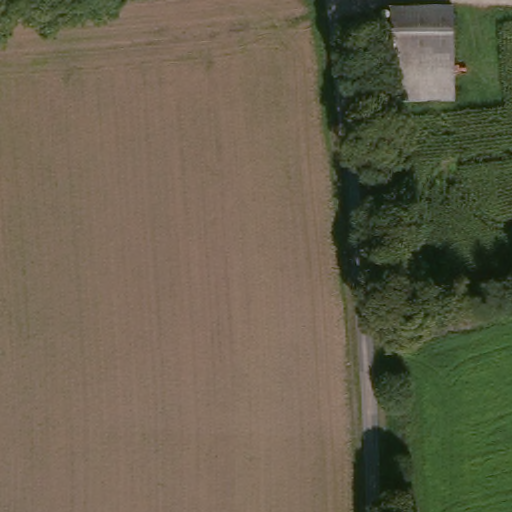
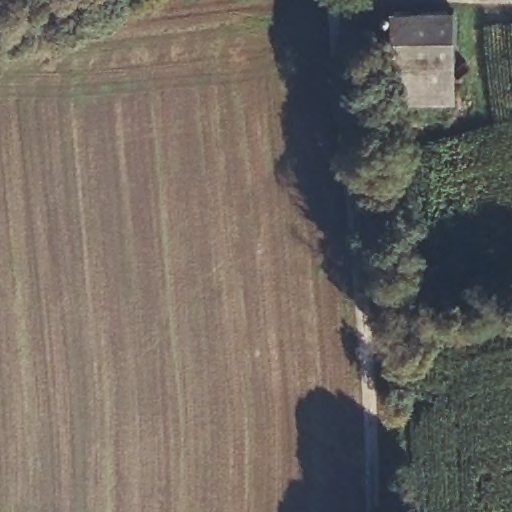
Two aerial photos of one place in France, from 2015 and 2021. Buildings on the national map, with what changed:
unchanged [(387,14),(451,11),(454,77),(392,94),(387,14)]
unchanged [(454,77),(456,104),(393,109),(392,94),(454,77)]

